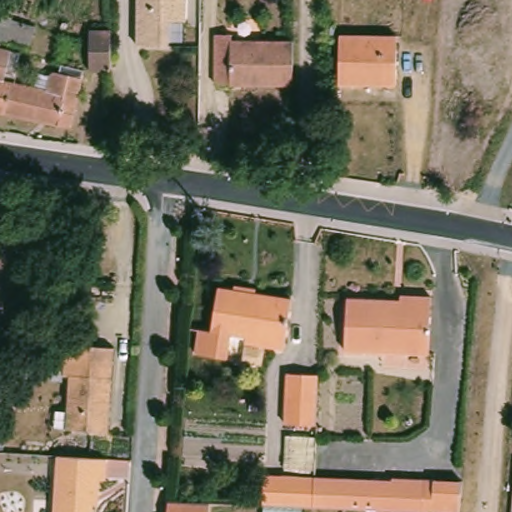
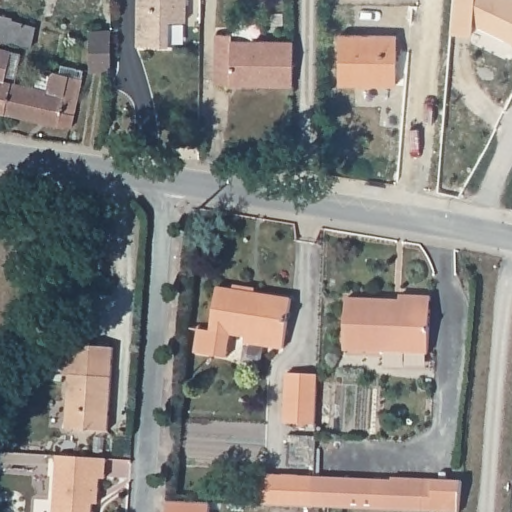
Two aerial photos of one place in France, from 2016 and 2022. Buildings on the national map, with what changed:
unchanged [(182,23),(165,23),(165,48),(134,48),(134,7),(134,0),(182,0),(182,23)]
new [(472,33),(451,31),(454,0),(512,0),(512,40),(473,20),(472,33)]
unchanged [(10,21),(10,23),(33,30),(29,50),(18,47),(0,43),(0,18),(10,21)]
unchanged [(221,82),(222,32),(239,32),(238,38),(300,39),(299,83),(221,82)]
unchanged [(85,73),(86,33),(108,33),(107,73),(85,73)]
unchanged [(340,87),(340,38),(398,39),(396,89),(378,88),(358,88),(340,87)]
unchanged [(16,55),(15,61),(11,80),(1,78),(0,83),(0,51),(16,55)]
unchanged [(51,74),(55,75),(57,67),(80,72),(67,130),(0,115),(0,113),(6,84),(10,85),(31,90),(35,75),(47,78),(47,77),(51,74)]
unchanged [(6,84),(0,113),(0,83),(6,84)]
unchanged [(246,345),(247,339),(230,336),(226,360),(194,355),(198,331),(212,333),(220,289),(238,292),(254,295),(293,301),(285,345),(285,351),(246,345)]
unchanged [(347,300),(401,303),(401,298),(432,299),(429,357),(345,353),(347,300)]
unchanged [(73,427),(76,374),(70,374),(70,359),(86,346),(87,344),(120,346),(115,430),(73,427)]
unchanged [(52,368),(58,385),(29,395),(23,377),(52,368)]
unchanged [(312,427),(280,426),(283,375),(315,377),(312,427)]
unchanged [(59,512),(63,453),(112,456),(111,476),(106,476),(105,489),(104,501),(99,501),(98,512),(59,512)]
unchanged [(269,504),(270,474),(320,476),(319,506),(269,504)]
unchanged [(397,480),(397,477),(468,480),(465,512),(457,512),(450,512),(319,506),(320,476),(397,480)]
unchanged [(211,505),(211,512),(168,512),(169,503),(211,505)]

